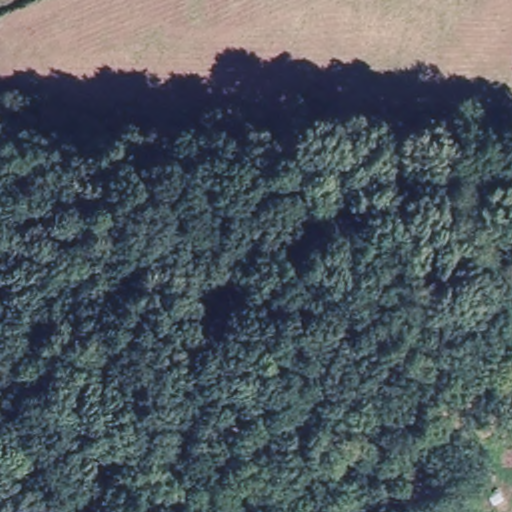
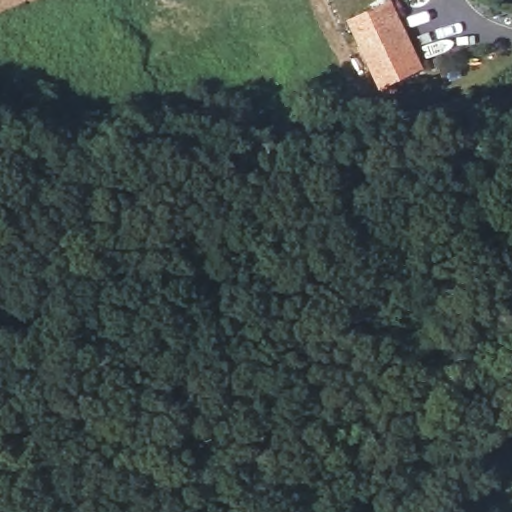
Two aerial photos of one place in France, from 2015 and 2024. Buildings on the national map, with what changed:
new [(390,0),(424,71),(378,91),(345,21),(389,0),(390,0)]

